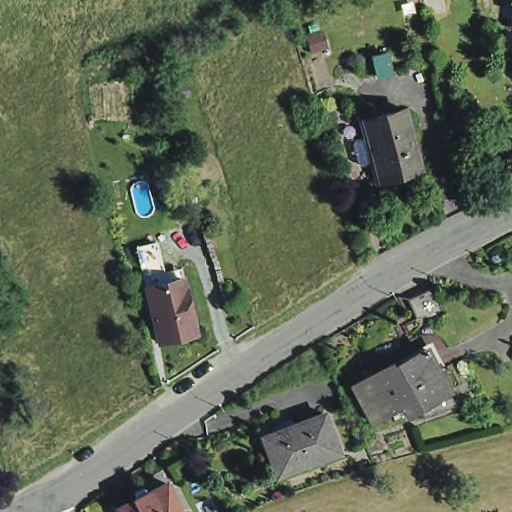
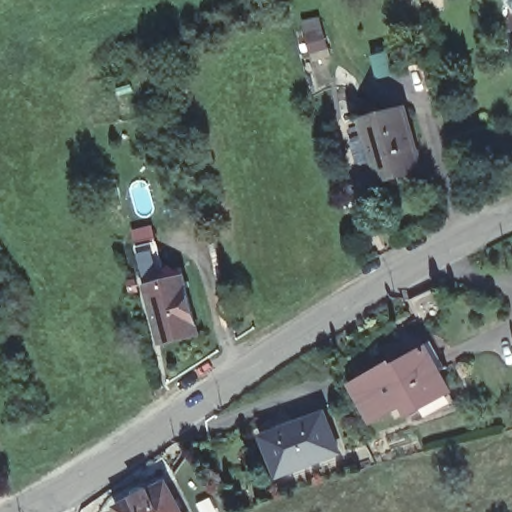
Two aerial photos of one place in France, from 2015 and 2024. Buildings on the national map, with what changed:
unchanged [(502,3),(506,0),(512,0),(512,29),(507,25),(509,12),(502,3)]
unchanged [(363,111),(395,102),(406,99),(423,161),(410,164),(379,172),(363,111)]
unchanged [(154,351),(142,298),(139,287),(176,278),(178,290),(191,342),(154,351)]
unchanged [(420,327),(408,300),(433,288),(446,317),(420,327)]
unchanged [(409,412),(404,403),(373,420),(353,384),(388,366),(389,368),(426,348),(450,391),(409,412)]
unchanged [(278,471),(263,430),(326,408),(339,448),(278,471)]
unchanged [(114,502),(163,477),(180,512),(119,512),(114,502)]

